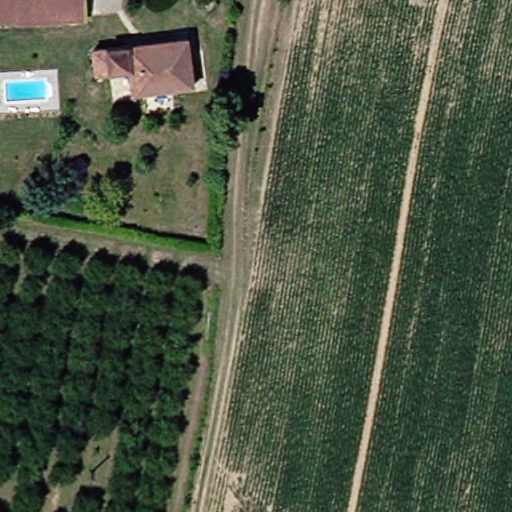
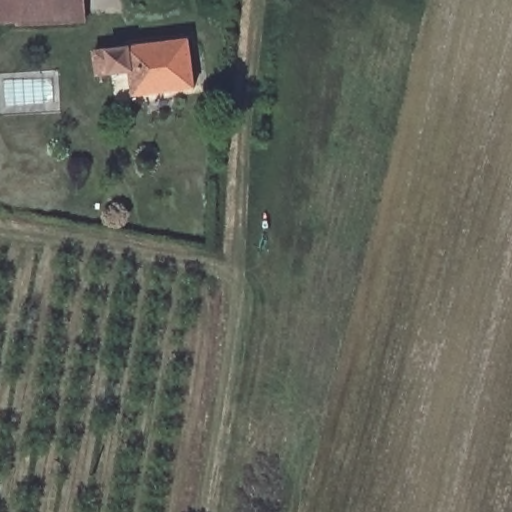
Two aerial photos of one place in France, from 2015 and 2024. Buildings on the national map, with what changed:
unchanged [(0,0),(88,0),(90,24),(0,30),(0,0)]
unchanged [(149,94),(148,70),(98,72),(97,47),(194,41),(197,91),(149,94)]

